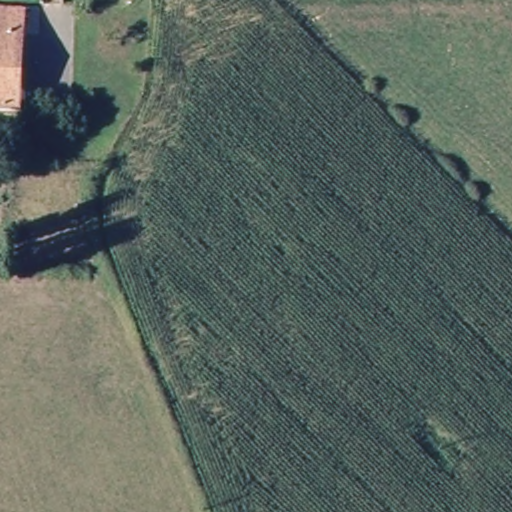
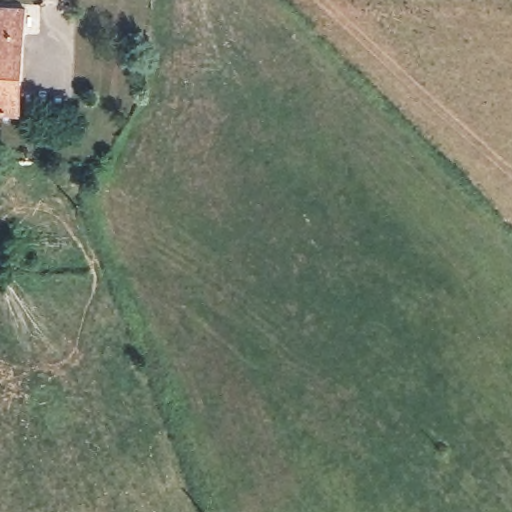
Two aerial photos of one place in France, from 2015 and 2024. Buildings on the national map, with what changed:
unchanged [(22,120),(0,119),(0,16),(26,17),(22,120)]

